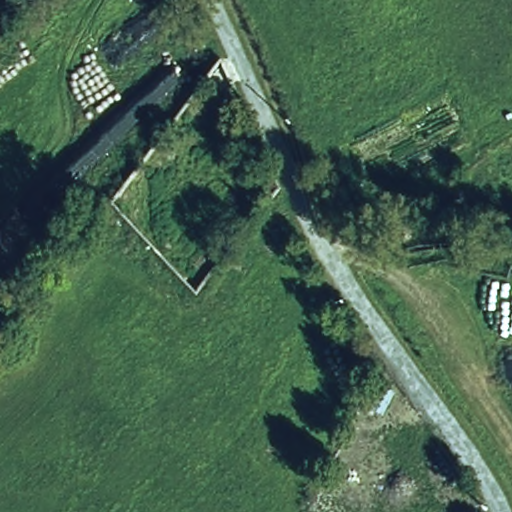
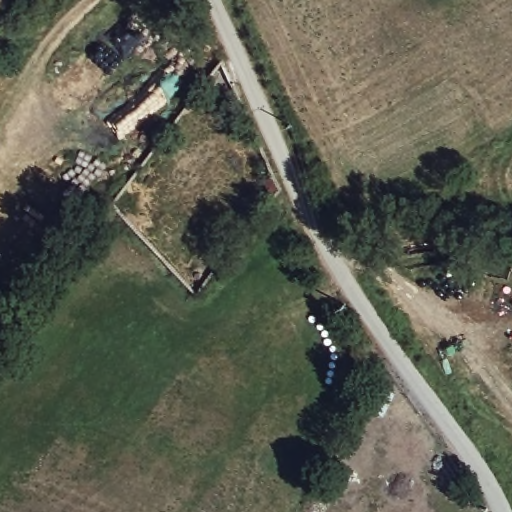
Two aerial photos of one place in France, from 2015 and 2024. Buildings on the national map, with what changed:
[]

